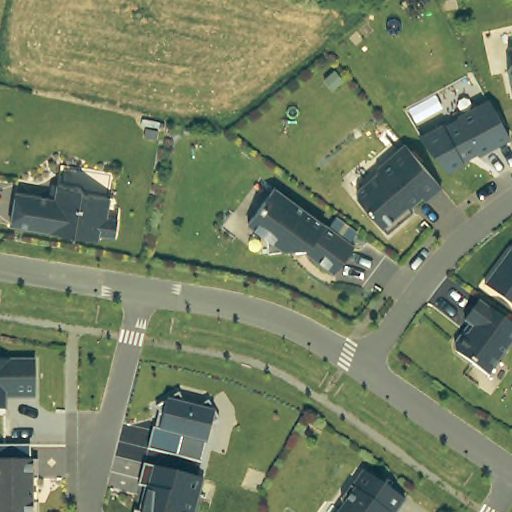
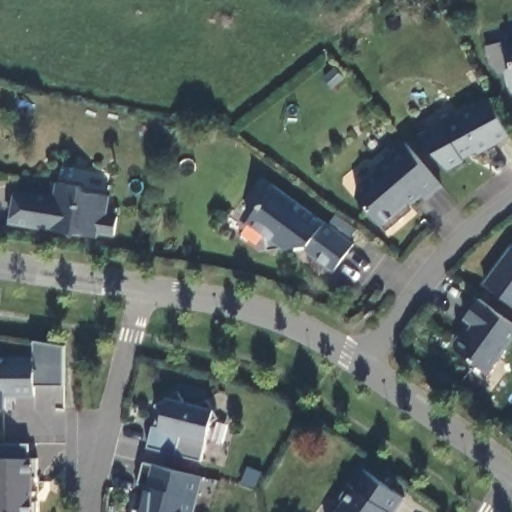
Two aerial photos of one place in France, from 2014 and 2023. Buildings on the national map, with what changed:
unchanged [(442,122),(445,126),(460,117),(456,113),(489,97),(511,139),(478,156),(478,153),(463,162),(465,165),(450,173),(419,136),(442,122)]
unchanged [(408,220),(391,234),(361,199),(361,192),(380,175),(381,169),(409,145),(445,188),(429,202),(426,197),(413,209),(416,213),(408,220)]
unchanged [(84,193),(109,197),(106,216),(117,218),(115,236),(98,233),(98,238),(10,224),(15,192),(55,198),(57,183),(79,187),(84,193)]
unchanged [(251,223),(278,187),(357,246),(337,273),(310,253),(309,246),(271,252),(269,236),(251,223)]
unchanged [(512,252),(512,304),(487,286),(512,252)]
unchanged [(512,322),(512,345),(490,375),(458,351),(457,344),(464,335),(472,324),(467,320),(482,300),(512,322)]
new [(37,359),(34,359),(34,341),(64,347),(64,387),(37,387),(37,359)]
unchanged [(7,409),(0,409),(0,359),(37,359),(37,396),(17,396),(7,396),(7,409)]
unchanged [(152,427),(156,428),(159,411),(156,405),(168,398),(177,393),(184,403),(200,406),(207,401),(214,411),(217,419),(211,421),(205,441),(199,461),(146,448),(152,427)]
unchanged [(29,445),(28,458),(39,458),(39,478),(34,478),(34,501),(39,501),(39,512),(0,512),(0,444),(29,445)]
unchanged [(143,511),(149,486),(140,484),(145,462),(204,477),(195,512),(134,512),(135,509),(143,511)]
unchanged [(342,497),(351,484),(353,485),(364,469),(406,499),(396,512),(338,512),(343,505),(342,497)]

